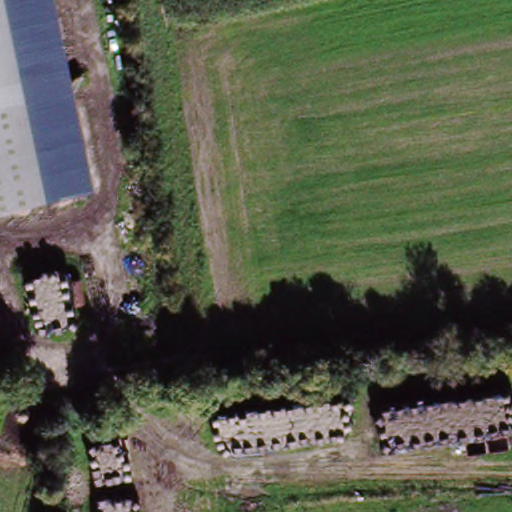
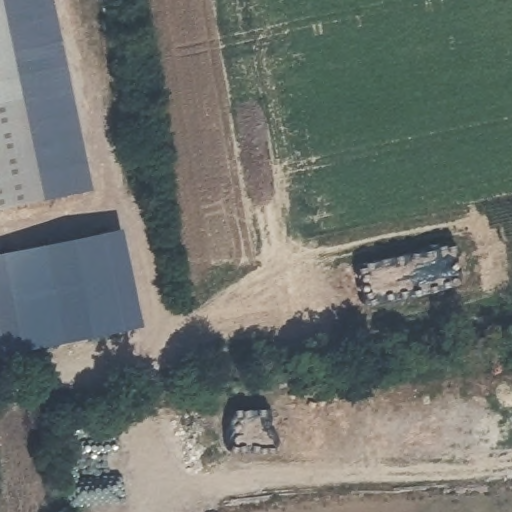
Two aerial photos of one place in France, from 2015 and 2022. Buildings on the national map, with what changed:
unchanged [(0,207),(0,0),(57,0),(92,189),(44,198),(0,207)]
new [(123,234),(141,322),(0,347),(0,255),(123,234)]

